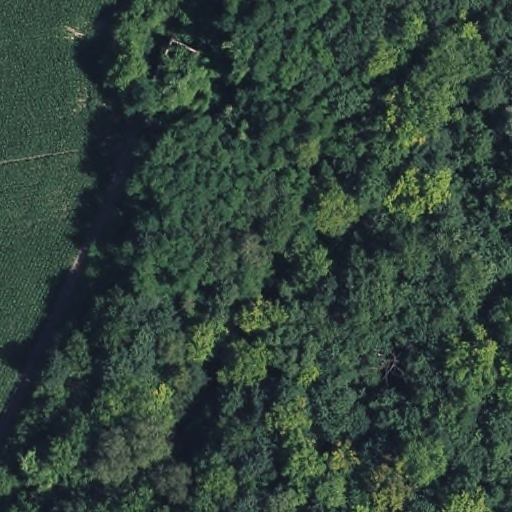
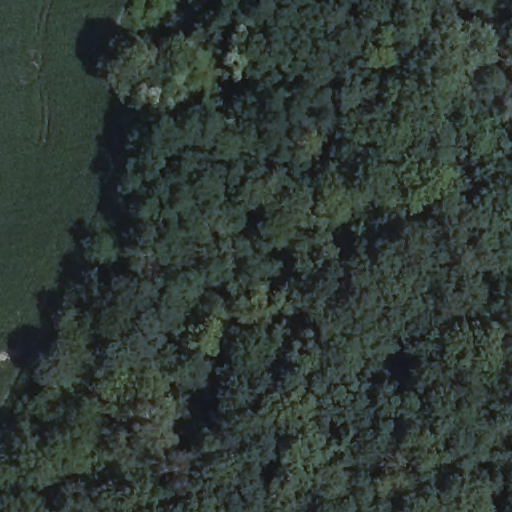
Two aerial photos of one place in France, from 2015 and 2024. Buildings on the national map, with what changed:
unchanged [(129,0),(159,0),(143,32),(119,20),(129,0)]
unchanged [(169,14),(176,0),(214,0),(201,28),(169,14)]
unchanged [(144,80),(167,33),(207,52),(185,100),(144,80)]

